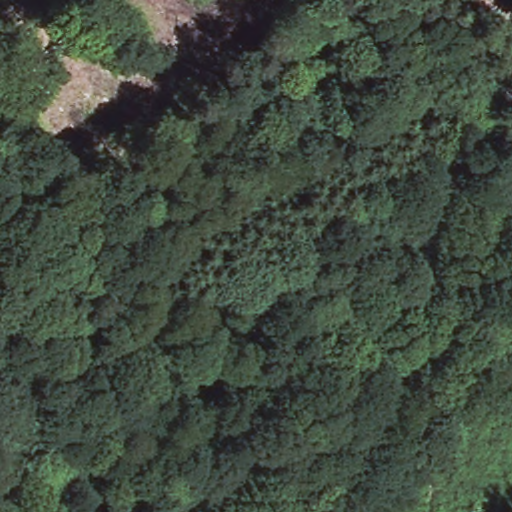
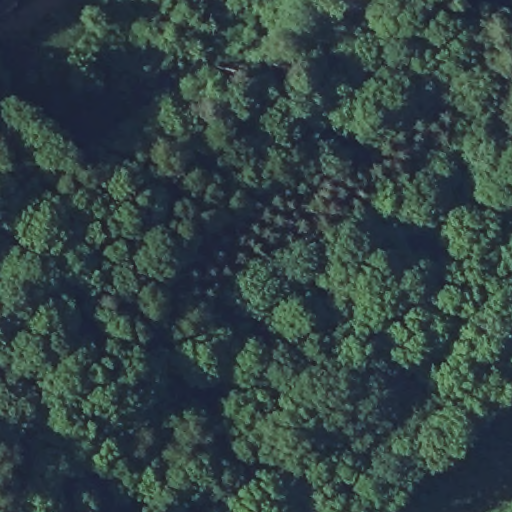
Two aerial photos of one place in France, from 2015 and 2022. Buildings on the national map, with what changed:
unchanged [(15,5),(0,13),(0,0),(12,0),(15,5)]

